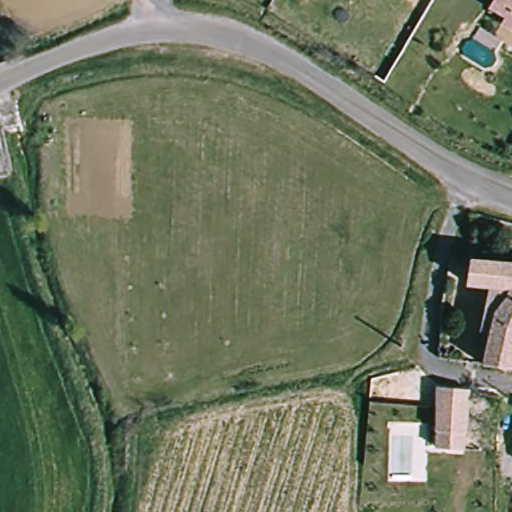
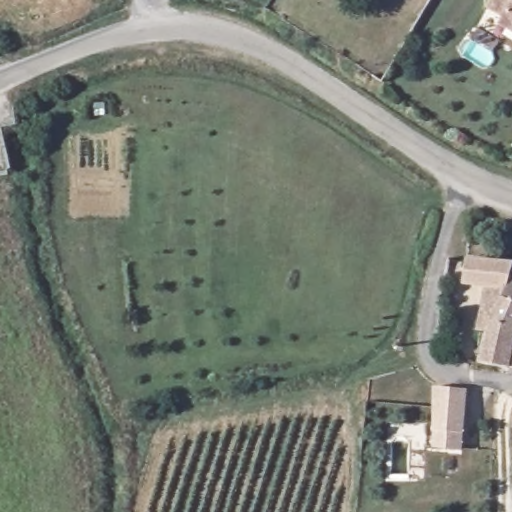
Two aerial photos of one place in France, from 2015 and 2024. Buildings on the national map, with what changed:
unchanged [(510,18),(495,8),(499,0),(512,0),(512,28),(506,24),(510,18)]
unchanged [(460,288),(462,261),(507,269),(500,296),(482,292),(460,288)]
unchanged [(512,340),(504,369),(477,365),(477,355),(469,355),(470,328),(465,328),(477,304),(482,292),(500,296),(507,269),(512,270),(512,340)]
unchanged [(512,340),(512,370),(504,369),(512,340)]
unchanged [(463,451),(453,451),(453,470),(435,470),(435,389),(467,392),(463,451)]

